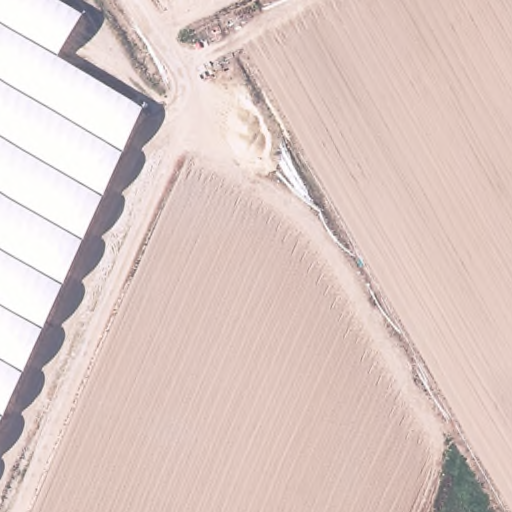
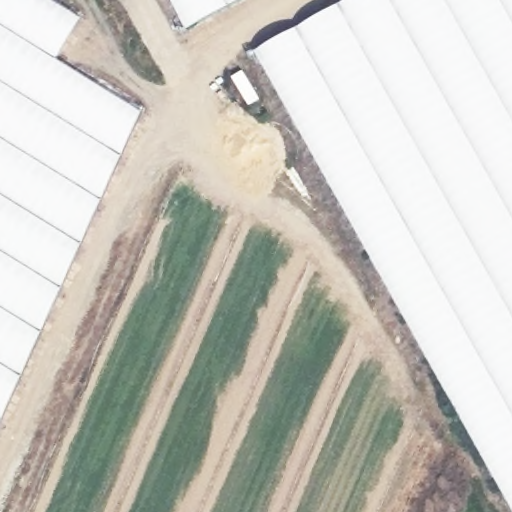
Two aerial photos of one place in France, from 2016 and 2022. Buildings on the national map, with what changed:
unchanged [(82,18),(56,62),(142,117),(0,425),(0,0),(53,0),(82,18)]
new [(172,0),(240,0),(187,28),(172,0)]
new [(512,500),(258,48),(345,0),(512,0),(512,500)]

